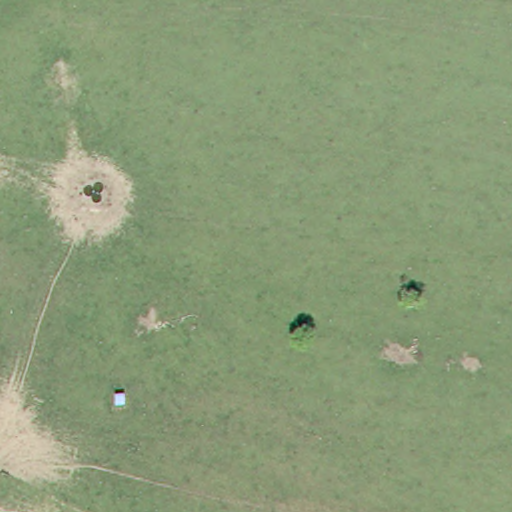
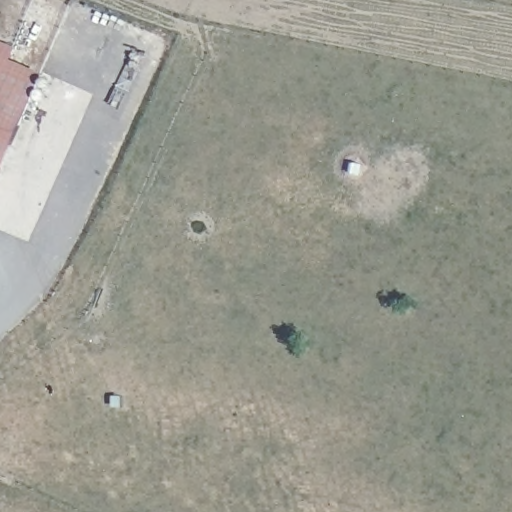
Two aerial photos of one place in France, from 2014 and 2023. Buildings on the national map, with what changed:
new [(12,60),(43,73),(0,175),(0,176),(0,40),(17,47),(12,60)]

